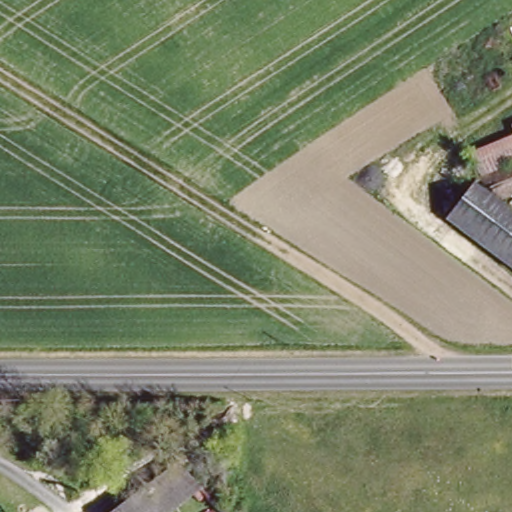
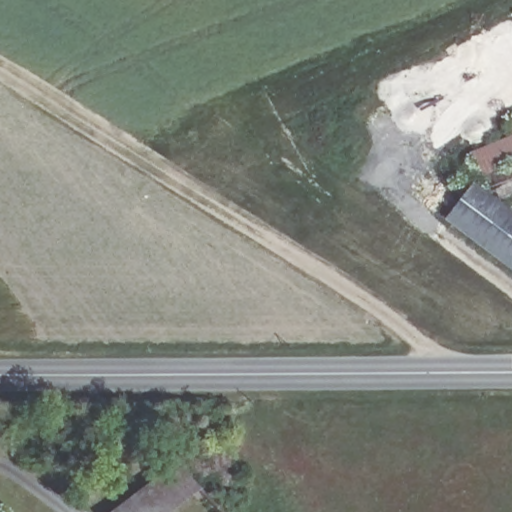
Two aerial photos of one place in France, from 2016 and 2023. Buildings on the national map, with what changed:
unchanged [(512,138),(512,169),(482,182),(472,155),(512,138)]
unchanged [(512,169),(512,199),(497,205),(478,188),(482,182),(512,169)]
unchanged [(478,188),(497,205),(512,218),(512,271),(450,221),(478,188)]
unchanged [(177,464),(208,495),(198,503),(192,495),(170,512),(115,512),(177,464)]

